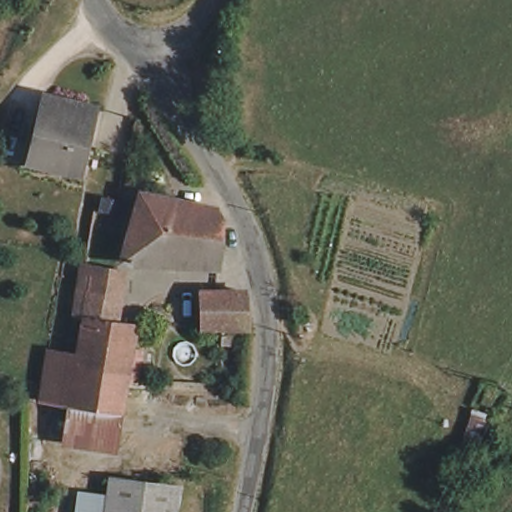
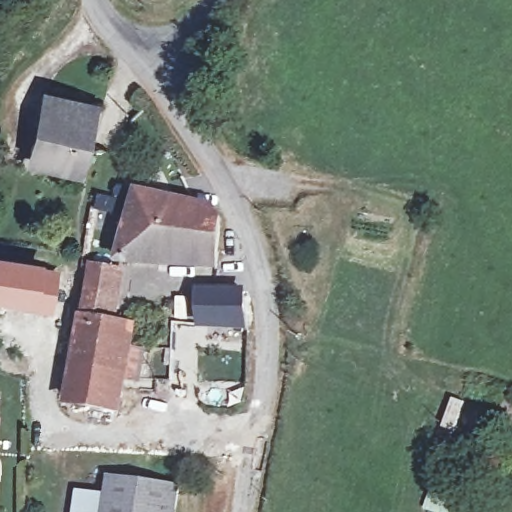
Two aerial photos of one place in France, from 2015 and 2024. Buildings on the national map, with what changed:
unchanged [(76,168),(35,160),(29,159),(45,95),(51,97),(91,106),(76,168)]
unchanged [(213,211),(219,224),(218,257),(231,258),(237,275),(120,264),(139,194),(213,211)]
new [(26,259),(60,268),(50,314),(0,303),(0,254),(26,259)]
unchanged [(70,403),(78,353),(84,320),(73,318),(83,268),(122,274),(118,326),(133,328),(124,382),(121,401),(120,413),(69,407),(70,403)]
unchanged [(248,286),(248,321),(202,323),(201,288),(248,286)]
unchanged [(50,349),(78,353),(70,403),(42,398),(50,349)]
unchanged [(120,413),(114,443),(65,435),(69,407),(120,413)]
unchanged [(181,490),(177,512),(108,512),(108,509),(113,480),(181,490)]
unchanged [(108,512),(82,512),(83,505),(108,509),(108,512)]

